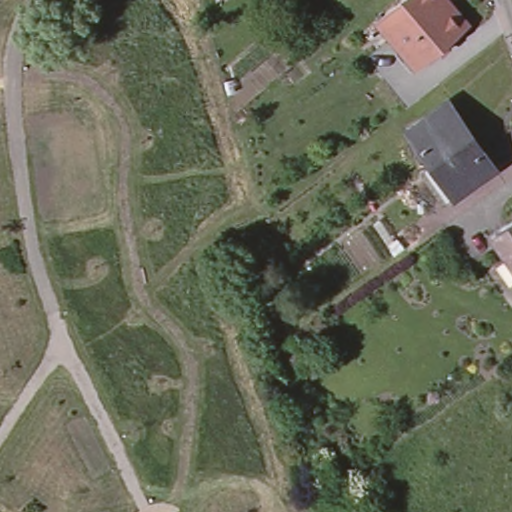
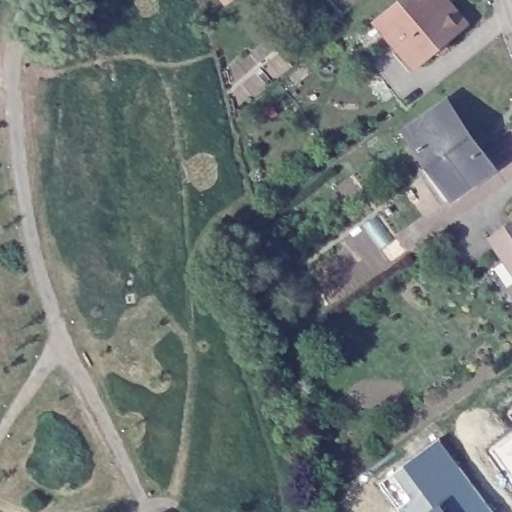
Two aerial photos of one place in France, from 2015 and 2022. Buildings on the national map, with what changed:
unchanged [(464,22),(447,37),(447,44),(439,51),(431,50),(414,64),(374,18),(397,0),(445,0),(448,4),(464,22)]
unchanged [(424,166),(437,157),(413,124),(452,96),(498,162),(459,189),(447,198),(424,166)]
unchanged [(512,223),(512,269),(490,238),(512,223)]
new [(509,414),(512,412),(512,418),(509,414)]
new [(492,451),(512,437),(512,478),(492,451)]
new [(439,438),(493,512),(431,512),(439,506),(407,462),(439,438)]
new [(407,462),(439,506),(431,512),(400,512),(378,483),(407,462)]

